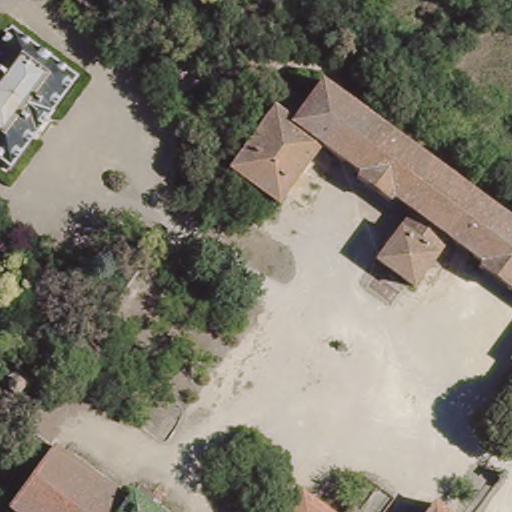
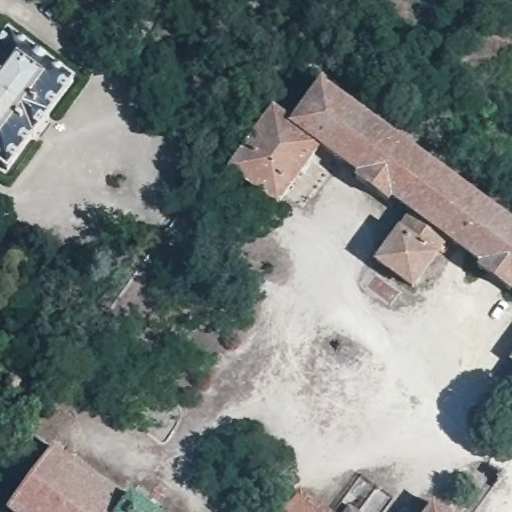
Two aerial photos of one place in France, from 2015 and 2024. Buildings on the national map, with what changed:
unchanged [(4,172),(0,169),(0,46),(6,38),(70,86),(4,172)]
unchanged [(287,122),(288,119),(318,81),(512,224),(512,285),(510,284),(507,288),(475,265),(477,260),(447,239),(408,210),(390,196),(386,201),(352,177),(357,171),(320,146),(287,122)]
unchanged [(276,203),(225,168),(272,107),(288,119),(287,122),(320,146),(276,203)]
unchanged [(372,259),(408,210),(447,239),(411,287),(372,259)]
unchanged [(512,350),(512,360),(507,357),(512,350)]
unchanged [(128,504),(133,496),(154,512),(4,512),(52,449),(128,504)]
unchanged [(393,502),(386,512),(335,512),(362,478),(393,502)]
unchanged [(325,512),(288,512),(302,494),(325,512)]
unchanged [(426,512),(430,507),(436,512),(426,512)]

